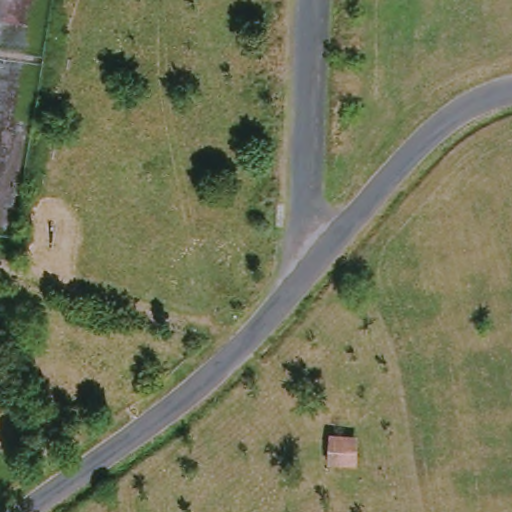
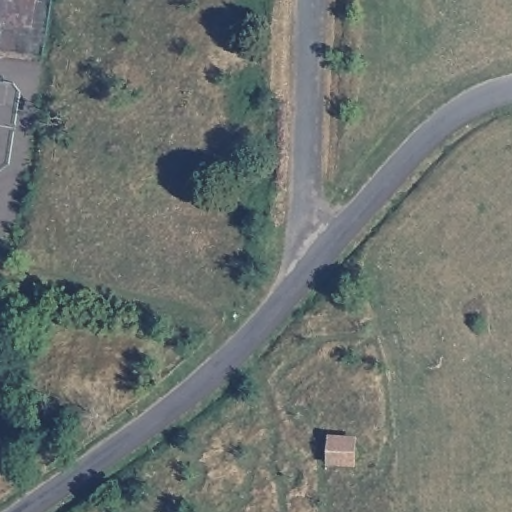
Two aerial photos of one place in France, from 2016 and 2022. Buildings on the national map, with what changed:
unchanged [(354,464),(329,465),(329,439),(354,438),(354,464)]

